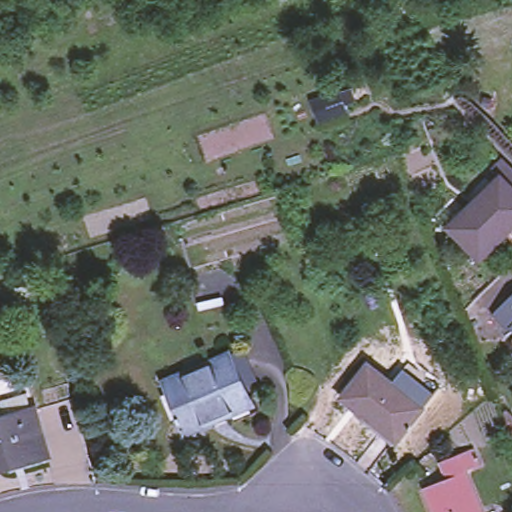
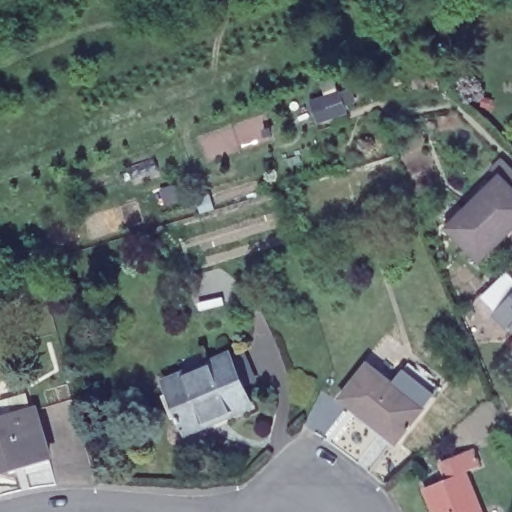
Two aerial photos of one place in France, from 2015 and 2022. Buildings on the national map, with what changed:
unchanged [(503,177),(512,167),(512,225),(510,224),(479,255),(452,226),(502,175),(503,177)]
unchanged [(498,314),(512,300),(512,327),(498,314)]
unchanged [(210,366),(210,363),(233,355),(253,408),(230,417),(230,415),(216,421),(215,419),(197,371),(210,366)]
unchanged [(421,408),(397,441),(343,400),(368,368),(421,408)]
unchanged [(215,419),(216,421),(210,423),(211,425),(186,435),(165,381),(189,371),(190,374),(197,371),(215,419)]
unchanged [(0,463),(0,414),(30,406),(42,452),(0,463)]
unchanged [(420,487),(442,478),(435,460),(465,447),(472,465),(460,470),(477,512),(431,512),(420,487)]

